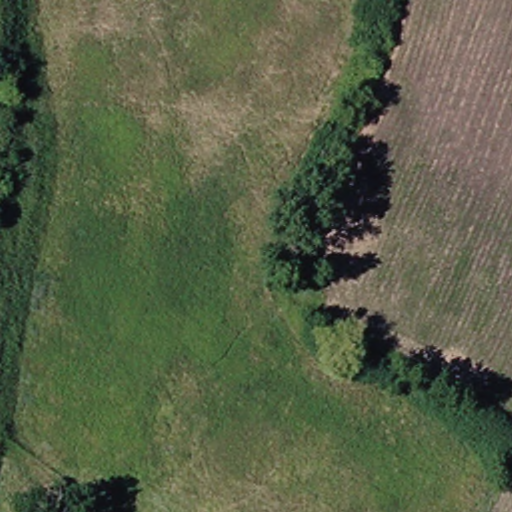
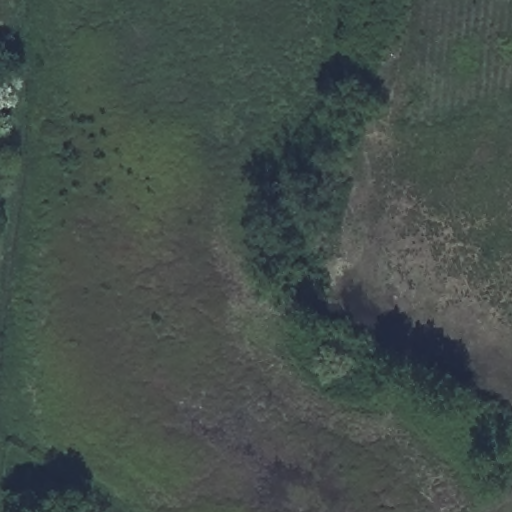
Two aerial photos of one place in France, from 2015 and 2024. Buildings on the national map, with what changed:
unchanged [(52,512),(43,505),(40,503),(50,490),(61,501),(54,512),(52,512)]

